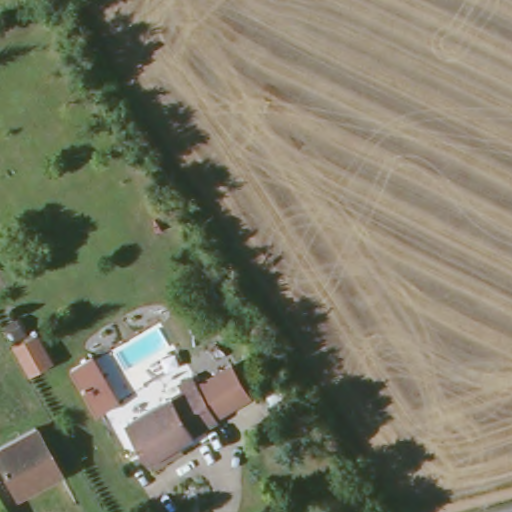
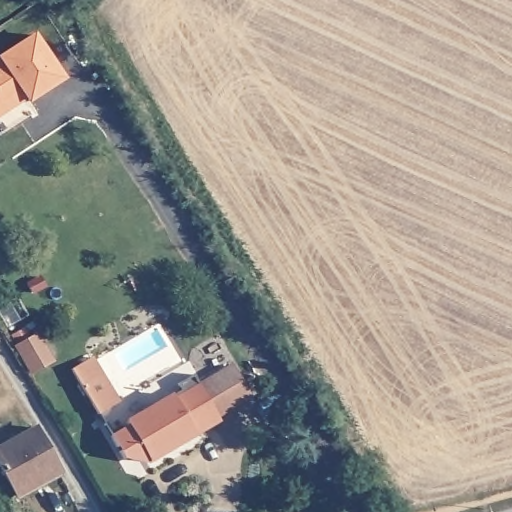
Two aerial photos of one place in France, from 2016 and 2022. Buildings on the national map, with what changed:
new [(67,85),(33,108),(30,104),(0,123),(0,66),(39,41),(67,85)]
unchanged [(0,330),(0,325),(14,317),(24,335),(33,331),(51,363),(27,374),(12,352),(0,330)]
unchanged [(194,384),(227,363),(249,395),(215,416),(194,384)]
unchanged [(150,470),(145,462),(124,425),(180,391),(177,385),(190,377),(194,384),(215,416),(217,421),(177,444),(182,451),(150,470)]
unchanged [(60,473),(16,496),(0,469),(0,447),(35,429),(60,473)]

